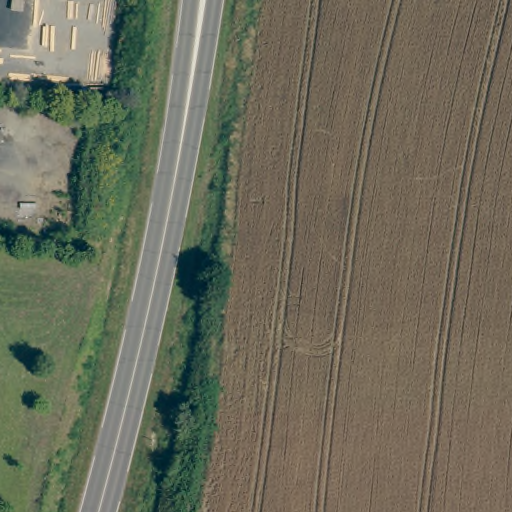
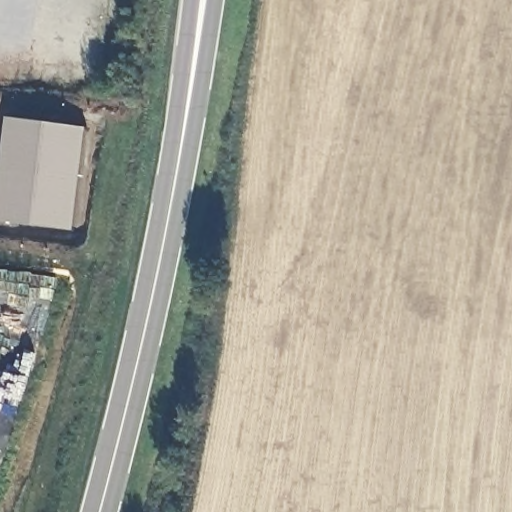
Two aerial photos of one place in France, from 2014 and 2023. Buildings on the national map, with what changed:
new [(72,231),(0,221),(0,171),(6,117),(86,129),(72,231)]

